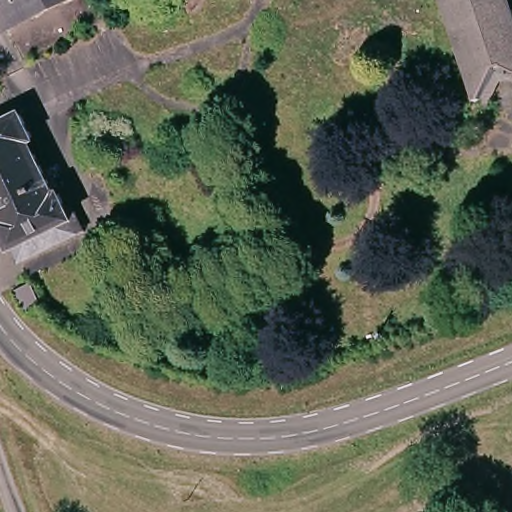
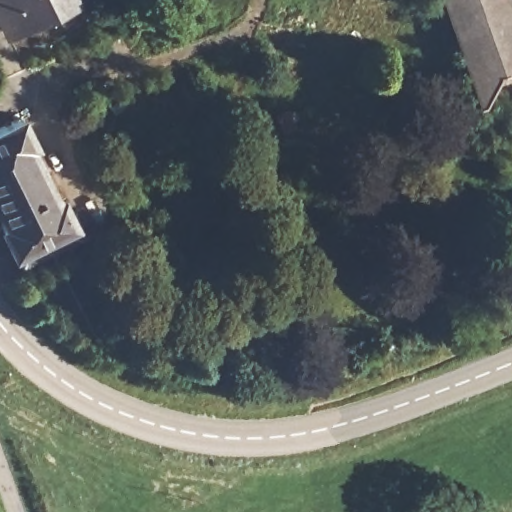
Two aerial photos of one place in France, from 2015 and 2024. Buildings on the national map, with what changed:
unchanged [(74,0),(7,33),(0,19),(0,0),(74,0)]
unchanged [(506,85),(498,89),(488,111),(479,108),(476,109),(437,0),(508,0),(512,12),(512,89),(506,85)]
unchanged [(18,112),(30,137),(27,140),(54,194),(58,191),(70,216),(68,218),(75,234),(20,261),(13,247),(11,246),(0,225),(0,222),(3,220),(0,213),(0,121),(18,112)]

